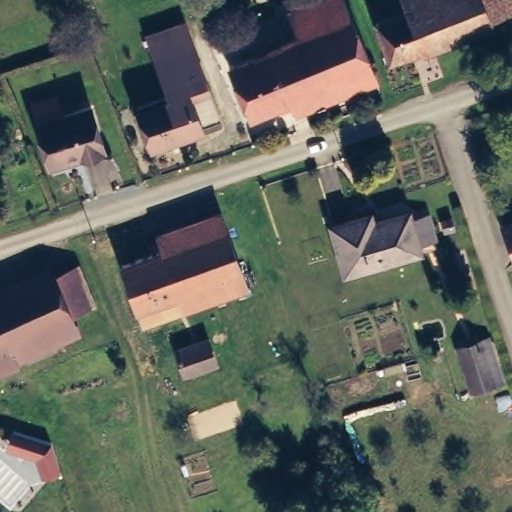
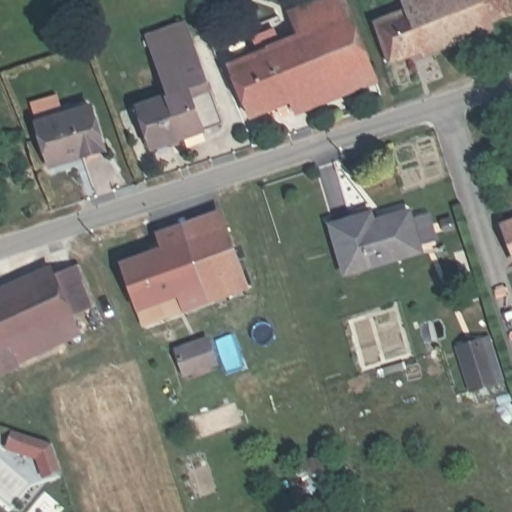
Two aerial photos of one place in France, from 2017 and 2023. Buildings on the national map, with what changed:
unchanged [(392,7),(399,3),(398,0),(502,0),(507,13),(387,59),(372,22),(394,14),(392,7)]
unchanged [(345,10),(374,78),(259,125),(237,74),(267,63),(262,48),(286,40),(290,52),(309,44),(304,26),(345,10)]
unchanged [(183,24),(220,122),(152,149),(135,107),(168,96),(147,38),(183,24)]
unchanged [(40,131),(34,112),(58,105),(62,117),(72,114),(75,122),(92,116),(105,160),(82,167),(80,161),(49,169),(39,132),(40,131)]
unchanged [(369,231),(402,220),(404,226),(421,220),(430,246),(413,252),(415,257),(342,280),(329,235),(367,224),(369,231)]
unchanged [(226,227),(240,270),(180,292),(184,306),(142,320),(122,262),(226,227)]
unchanged [(512,227),(512,254),(504,229),(512,227)]
unchanged [(84,262),(102,301),(79,311),(62,272),(84,262)]
unchanged [(79,311),(87,329),(5,367),(0,357),(0,299),(62,272),(79,311)]
unchanged [(212,339),(220,363),(187,373),(180,349),(212,339)]
unchanged [(490,341),(504,385),(496,387),(472,396),(457,352),(482,344),(490,341)]
unchanged [(320,459),(331,488),(302,499),(290,471),(320,459)]

